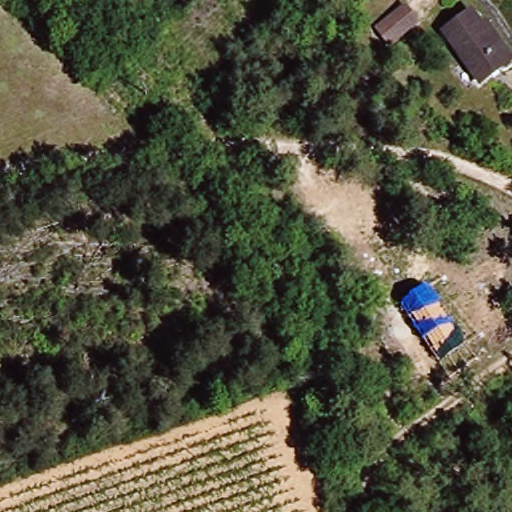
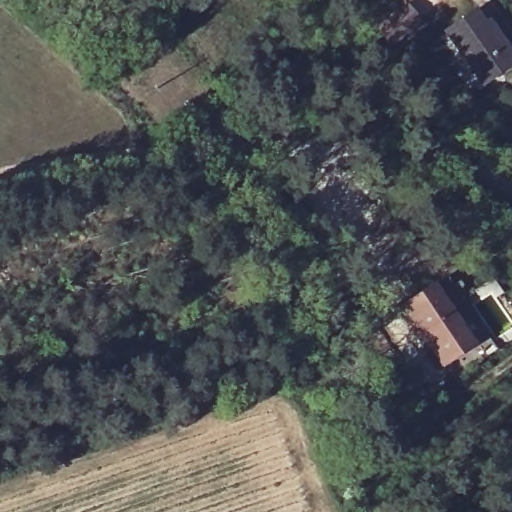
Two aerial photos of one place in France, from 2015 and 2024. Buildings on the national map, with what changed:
unchanged [(481,86),(435,44),(461,15),(507,58),(481,86)]
unchanged [(380,50),(402,24),(421,38),(397,64),(380,50)]
new [(495,351),(448,381),(438,370),(399,309),(431,288),(445,278),(495,351)]

